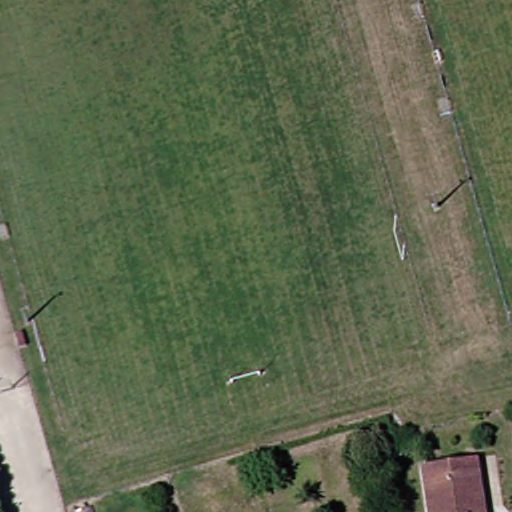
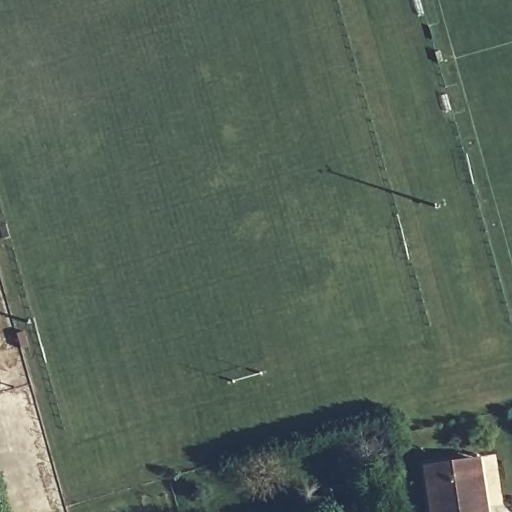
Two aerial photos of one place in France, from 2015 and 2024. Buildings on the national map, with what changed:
unchanged [(425,466),(473,459),(479,458),(487,512),(433,512),(425,466)]

